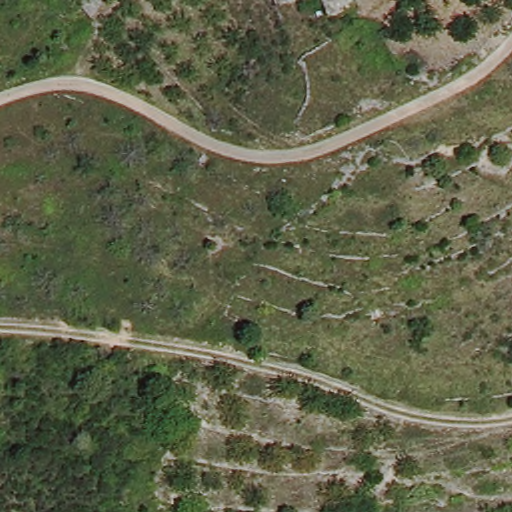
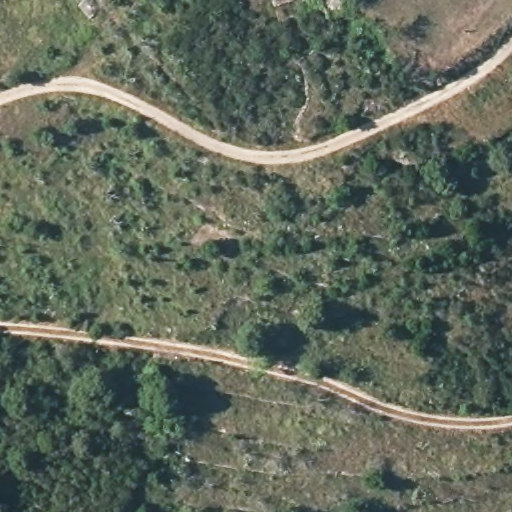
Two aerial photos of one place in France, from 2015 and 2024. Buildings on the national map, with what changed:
unchanged [(334,16),(328,0),(355,0),(358,9),(334,16)]

